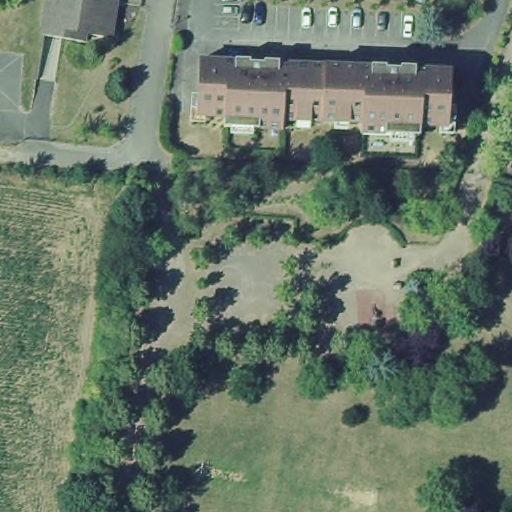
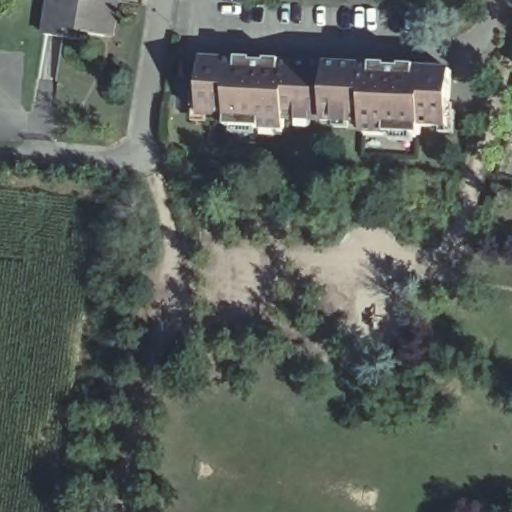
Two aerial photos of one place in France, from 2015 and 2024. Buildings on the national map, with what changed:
unchanged [(109,40),(68,33),(68,41),(41,36),(43,29),(45,15),(47,0),(115,0),(109,40)]
unchanged [(196,64),(233,65),(233,61),(248,62),(248,66),(263,66),(263,62),(279,63),(279,67),(370,70),(370,67),(385,67),(384,71),(399,72),(399,69),(411,69),(411,72),(447,73),(444,128),(416,127),(416,137),(359,135),(359,125),(281,122),(281,132),(221,129),(222,119),(194,118),(196,64)]

